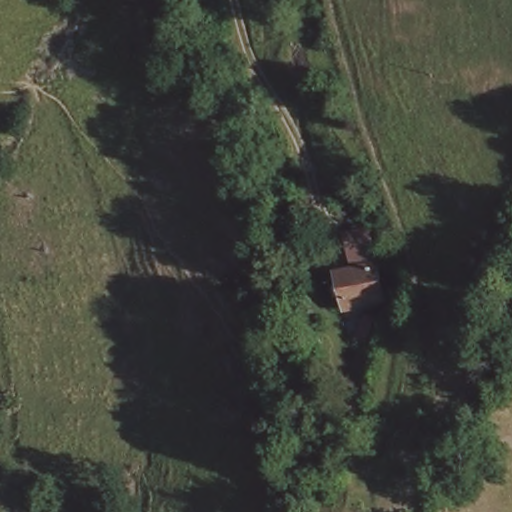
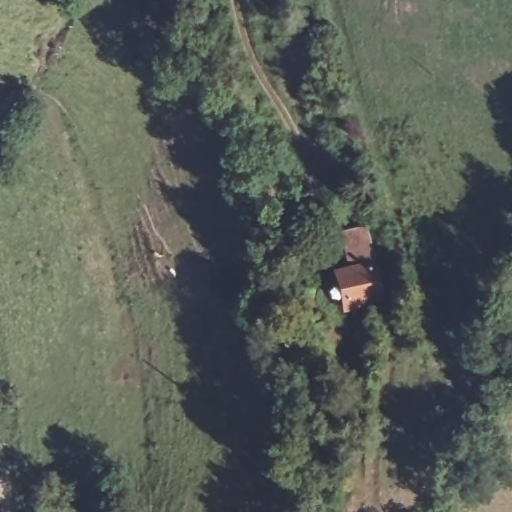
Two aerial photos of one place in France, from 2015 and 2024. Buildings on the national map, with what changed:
unchanged [(370,226),(376,266),(383,309),(342,315),(336,275),(351,270),(342,232),(370,226)]

